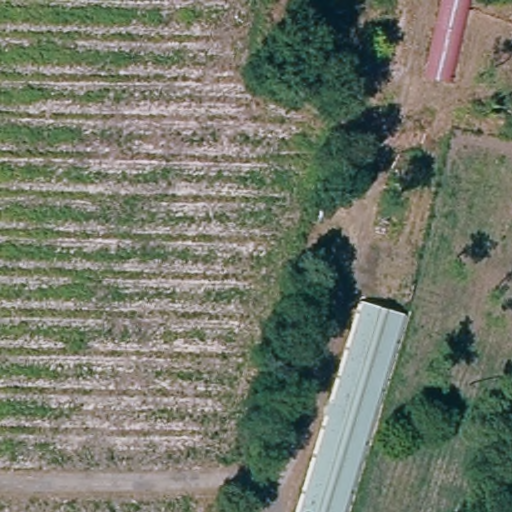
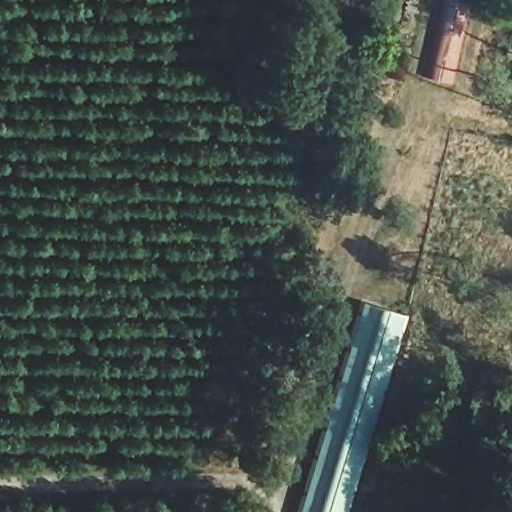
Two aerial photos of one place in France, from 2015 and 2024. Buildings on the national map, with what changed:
unchanged [(421,80),(442,0),(475,0),(450,89),(421,80)]
unchanged [(347,512),(295,512),(291,511),(356,287),(407,301),(347,512)]

